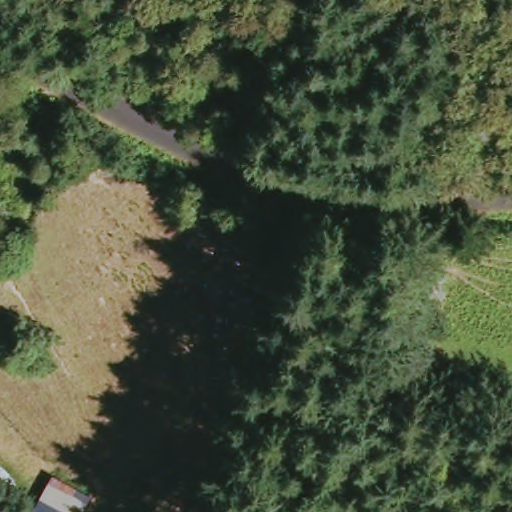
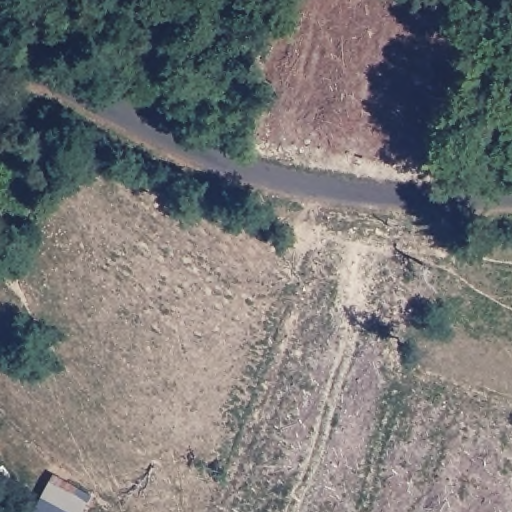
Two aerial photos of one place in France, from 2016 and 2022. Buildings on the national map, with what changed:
unchanged [(98,501),(91,512),(41,512),(59,473),(98,501)]

